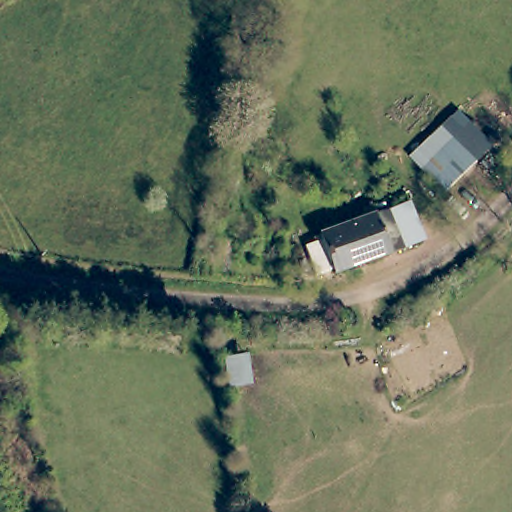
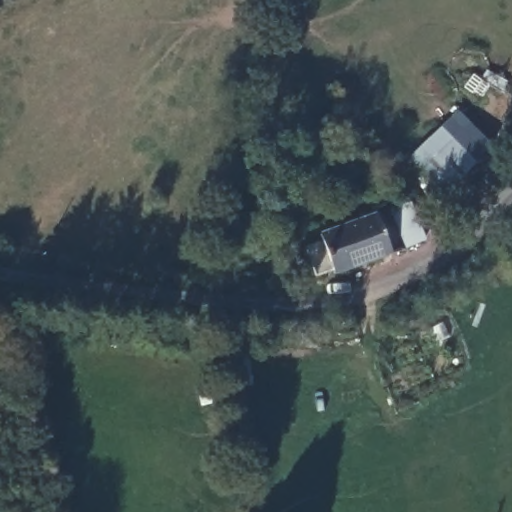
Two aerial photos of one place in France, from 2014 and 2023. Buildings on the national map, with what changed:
unchanged [(453,141),(422,171),(409,157),(459,111),(492,148),(476,164),(453,141)]
unchanged [(453,141),(476,164),(444,194),(422,171),(453,141)]
unchanged [(316,273),(308,250),(324,244),(321,236),(394,210),(409,204),(424,242),(406,249),(334,275),(332,268),(316,273)]

